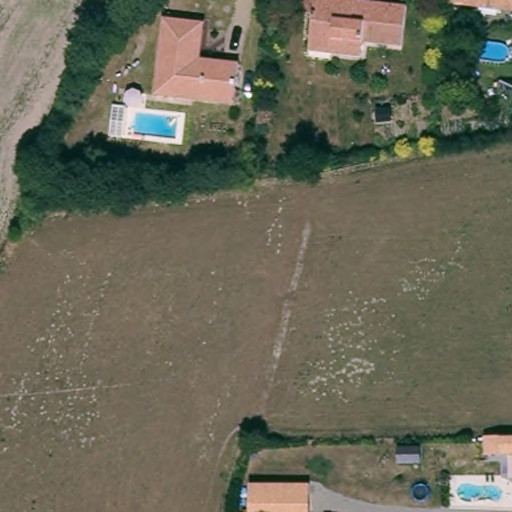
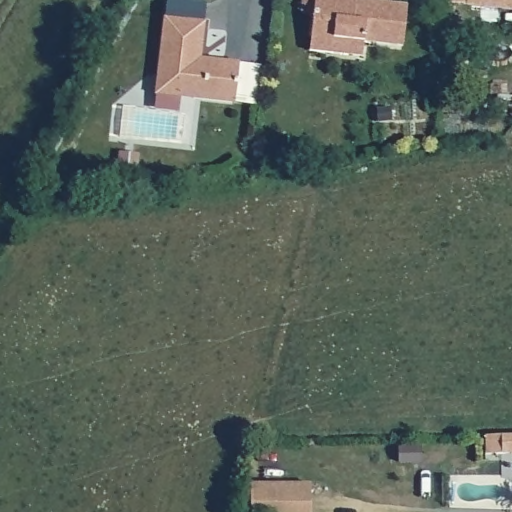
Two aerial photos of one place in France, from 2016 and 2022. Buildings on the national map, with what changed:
unchanged [(302,16),(304,0),(356,0),(355,5),(370,6),(407,11),(402,51),(364,46),(362,61),(330,58),(309,55),(310,41),(313,17),(302,16)]
unchanged [(466,0),(512,0),(512,14),(465,9),(466,0)]
unchanged [(157,79),(164,23),(203,27),(199,63),(239,68),(235,107),(175,101),(155,98),(157,79)]
unchanged [(390,120),(378,121),(378,109),(390,109),(390,120)]
unchanged [(485,435),(512,434),(512,453),(485,454),(485,435)]
unchanged [(310,483),(310,512),(250,512),(250,483),(310,483)]

